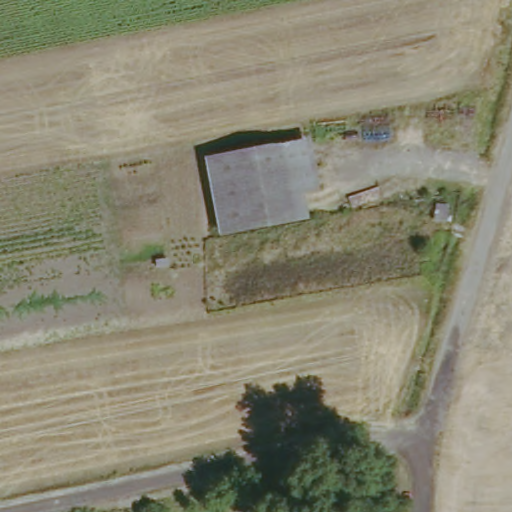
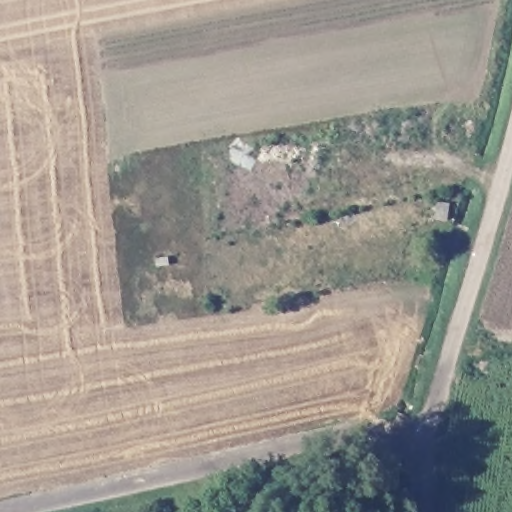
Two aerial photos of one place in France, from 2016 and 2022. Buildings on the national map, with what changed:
demolished [(242,230),(227,156),(295,142),(310,217),(242,230)]

